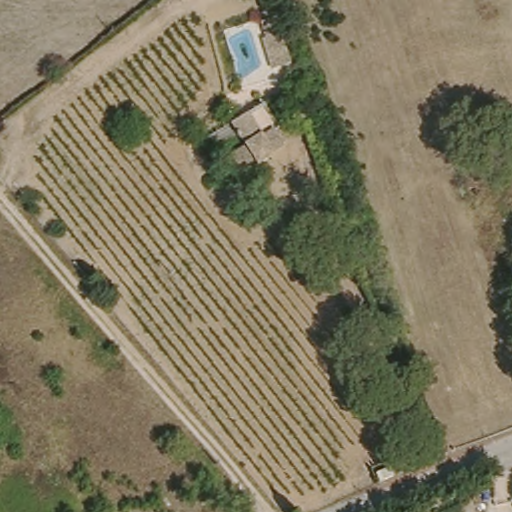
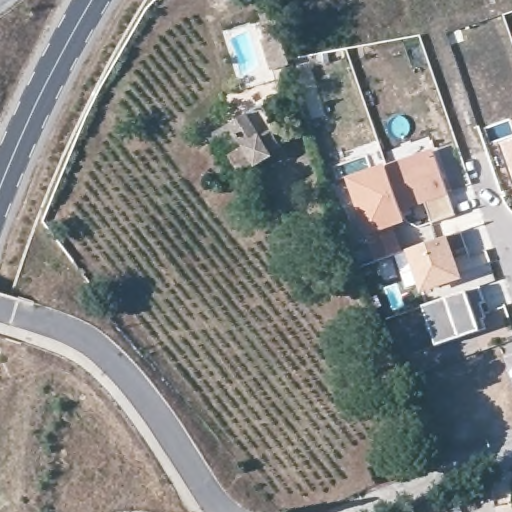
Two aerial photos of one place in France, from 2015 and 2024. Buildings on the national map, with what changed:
unchanged [(273,137),(281,153),(272,158),(273,162),(255,172),(252,167),(238,177),(229,161),(243,154),(229,130),(261,110),(277,136),(273,137)]
new [(512,177),(501,145),(512,141),(512,177)]
demolished [(512,143),(512,144),(511,143),(512,143)]
new [(402,211),(387,166),(433,150),(456,216),(433,225),(426,204),(402,211)]
new [(386,165),(387,166),(402,211),(407,223),(395,227),(403,252),(375,262),(367,237),(346,179),(386,165)]
new [(421,292),(406,251),(448,237),(461,232),(467,250),(454,256),(462,278),(421,292)]
new [(436,345),(415,352),(404,330),(429,321),(425,308),(466,292),(480,287),(486,303),(480,305),(486,319),(482,321),(485,329),(480,331),(436,345)]
unchanged [(368,474),(383,468),(387,477),(372,483),(368,474)]

